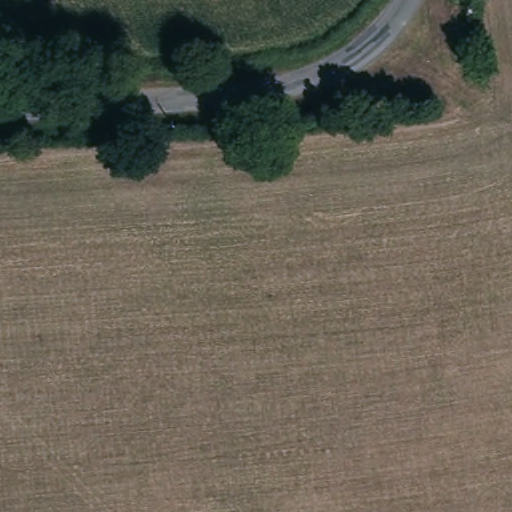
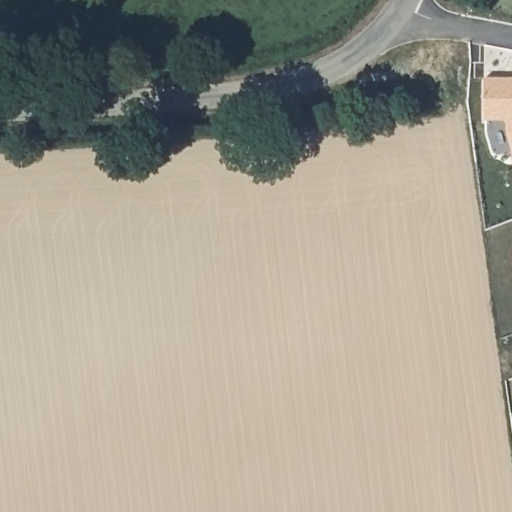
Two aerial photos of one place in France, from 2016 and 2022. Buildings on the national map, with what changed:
new [(512,80),(512,154),(506,132),(506,122),(484,122),(484,80),(502,80),(509,80),(512,80)]

